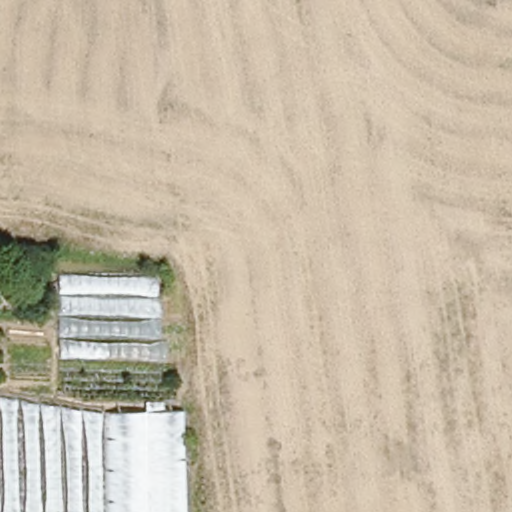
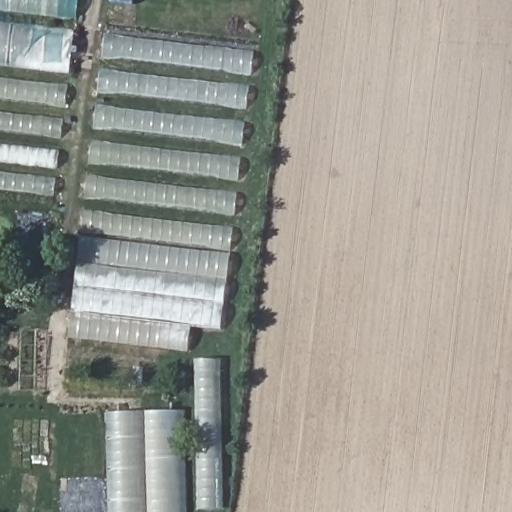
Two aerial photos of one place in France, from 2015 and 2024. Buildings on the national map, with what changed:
new [(77,0),(53,197),(0,191),(0,0),(77,0)]
new [(191,327),(187,351),(67,337),(104,33),(255,53),(220,330),(191,327)]
new [(105,412),(195,410),(194,359),(219,358),(222,510),(185,510),(185,512),(108,512),(105,412)]
demolished [(79,407),(80,512),(0,512),(0,396),(79,407)]

